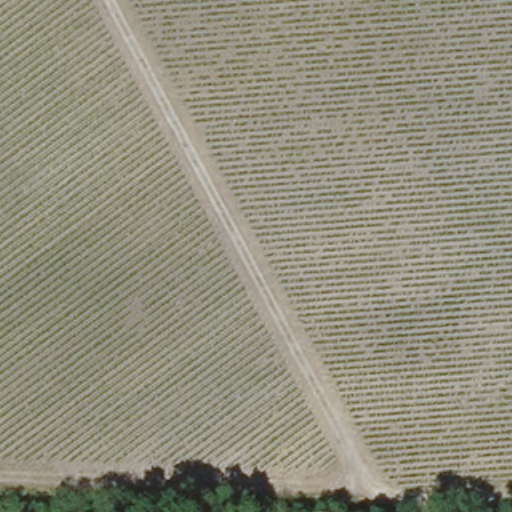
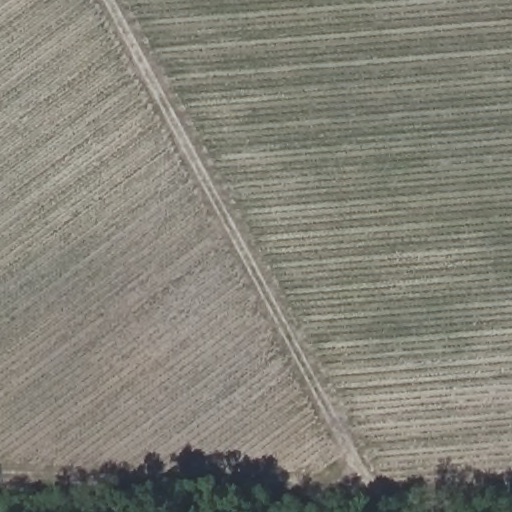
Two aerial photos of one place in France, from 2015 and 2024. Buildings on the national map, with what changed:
[]

